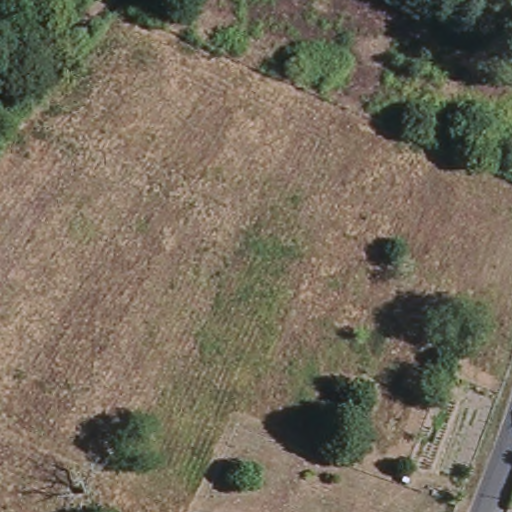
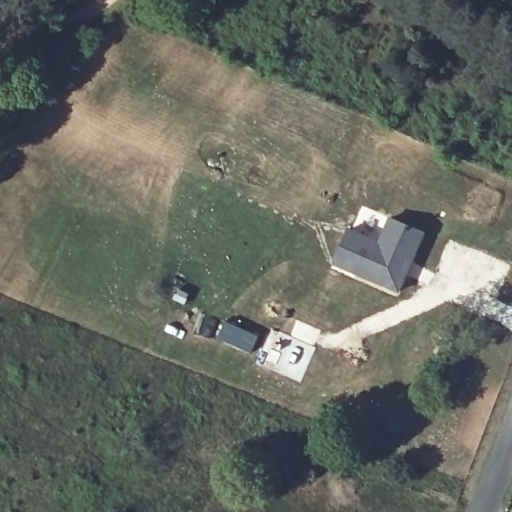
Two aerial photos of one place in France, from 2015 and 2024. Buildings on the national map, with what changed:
new [(348,226),(376,238),(387,216),(426,232),(398,293),(330,264),(348,226)]

